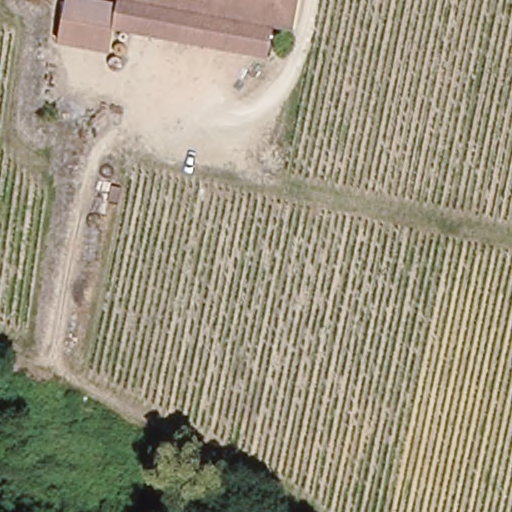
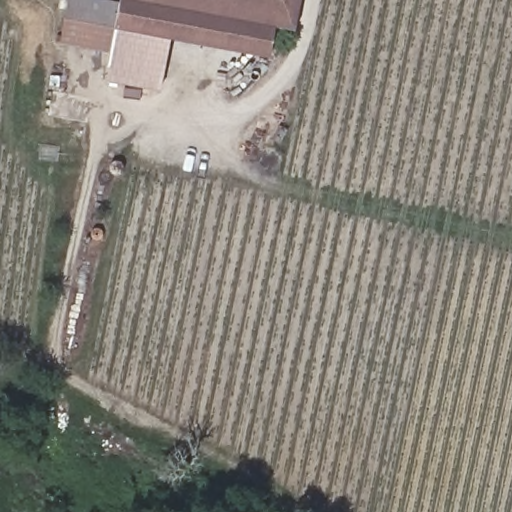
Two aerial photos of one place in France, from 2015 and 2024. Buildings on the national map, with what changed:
unchanged [(53,39),(61,0),(115,0),(110,25),(105,50),(53,39)]
unchanged [(138,0),(133,30),(110,25),(115,0),(138,0)]
unchanged [(273,30),(267,59),(133,30),(138,0),(299,0),(291,34),(273,30)]
new [(111,52),(105,50),(110,25),(133,30),(171,39),(160,93),(106,81),(111,52)]

